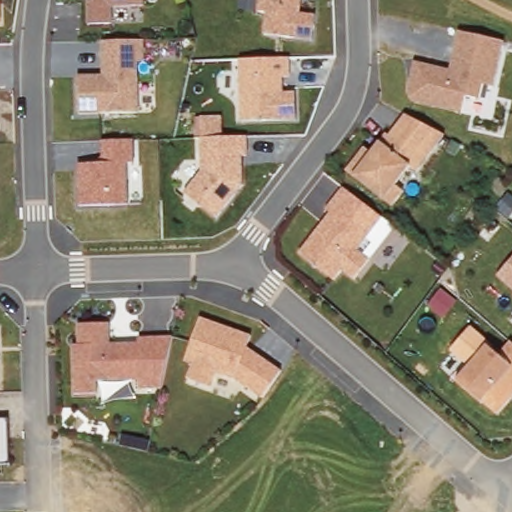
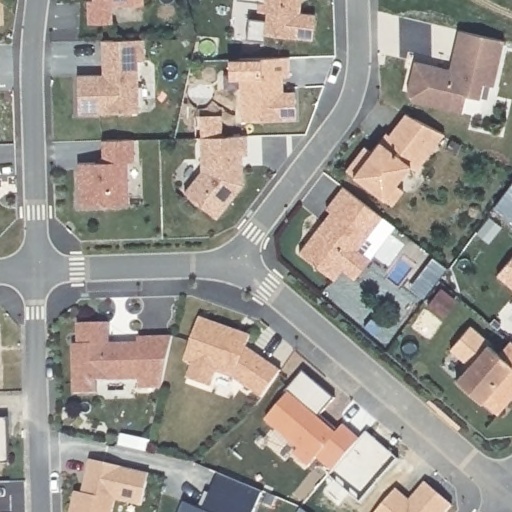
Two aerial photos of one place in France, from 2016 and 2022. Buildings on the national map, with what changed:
unchanged [(0,23),(0,0),(1,22),(0,23)]
unchanged [(146,6),(115,7),(115,25),(91,25),(89,0),(145,0),(146,6)]
unchanged [(266,12),(258,12),(259,0),(300,0),(299,14),(313,16),(311,37),(265,35),(266,12)]
unchanged [(415,102),(407,91),(415,61),(449,69),(458,30),(502,40),(492,86),(482,85),(480,99),(466,96),(460,114),(415,102)]
unchanged [(77,75),(102,75),(101,39),(142,39),(144,63),(137,63),(138,111),(79,114),(77,75)]
unchanged [(237,59),(287,56),(288,79),(283,80),(283,94),(295,93),(296,116),(240,121),(237,59)]
unchanged [(447,130),(417,169),(411,164),(397,182),(405,189),(393,204),(351,171),(347,169),(366,145),(372,150),(381,140),(387,130),(391,133),(408,110),(420,115),(447,130)]
unchanged [(182,192),(202,172),(201,137),(247,135),(247,157),(242,158),(244,185),(216,218),(182,192)]
unchanged [(77,164),(102,162),(101,140),(133,139),(135,163),(125,164),(127,202),(80,206),(77,164)]
unchanged [(384,215),(359,248),(372,257),(356,277),(344,267),(336,278),(301,251),(332,210),(328,207),(345,185),(384,215)]
unchanged [(255,335),(249,347),(283,372),(265,399),(222,377),(216,388),(187,380),(192,363),(185,361),(199,315),(255,335)]
unchanged [(116,322),(114,341),(140,341),(141,335),(176,335),(162,388),(141,393),(141,378),(98,380),(100,392),(73,391),(79,325),(116,322)]
unchanged [(501,353),(512,342),(512,397),(498,413),(459,378),(487,345),(501,353)]
new [(293,390),(291,387),(307,367),(340,395),(323,414),(341,430),(348,421),(365,435),(338,467),(322,453),(314,463),(299,450),(304,445),(271,416),(293,390)]
unchanged [(14,466),(0,466),(0,419),(13,419),(14,466)]
new [(90,477),(94,459),(153,472),(146,505),(119,499),(116,512),(74,512),(79,491),(86,492),(90,477)]
new [(209,510),(224,472),(268,490),(260,512),(186,512),(190,502),(209,510)]
new [(415,497),(431,478),(457,501),(448,512),(379,512),(396,492),(402,485),(415,497)]

